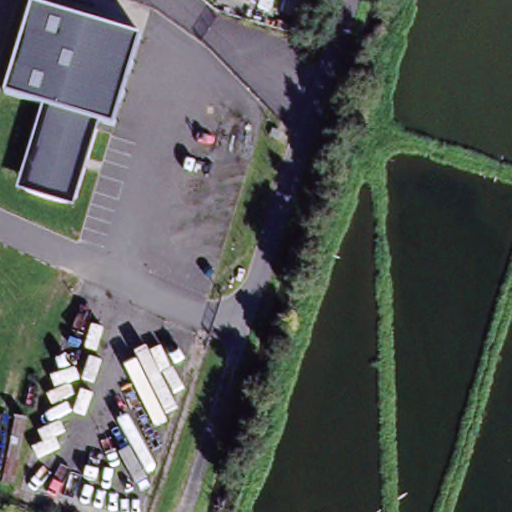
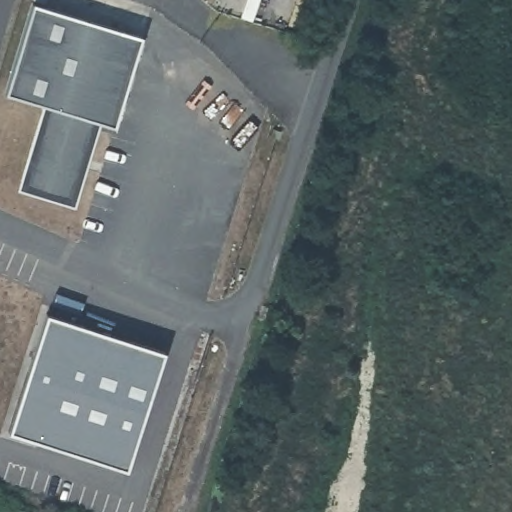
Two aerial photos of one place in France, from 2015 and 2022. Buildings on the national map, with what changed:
unchanged [(113,125),(100,122),(75,206),(18,189),(44,105),(5,94),(31,3),(140,37),(113,125)]
new [(49,321),(169,358),(131,477),(11,440),(49,321)]

